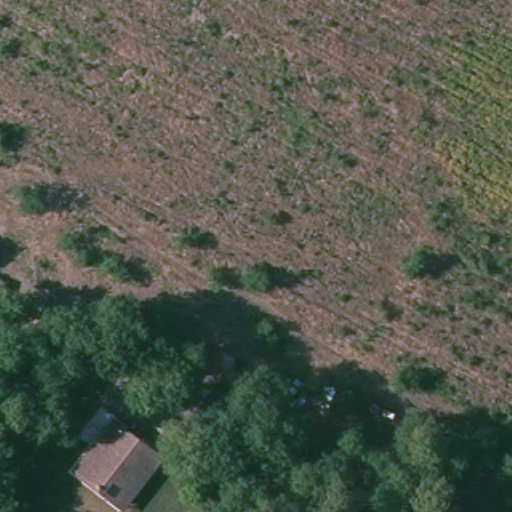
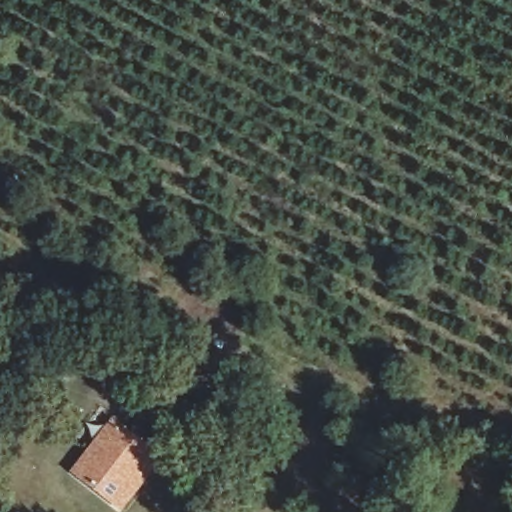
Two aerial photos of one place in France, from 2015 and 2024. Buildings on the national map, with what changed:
unchanged [(216,419),(185,407),(196,381),(231,398),(216,419)]
unchanged [(75,471),(90,450),(79,442),(102,410),(166,458),(125,511),(75,471)]

